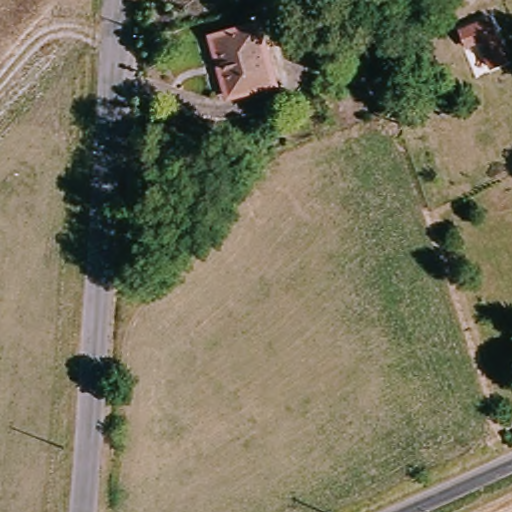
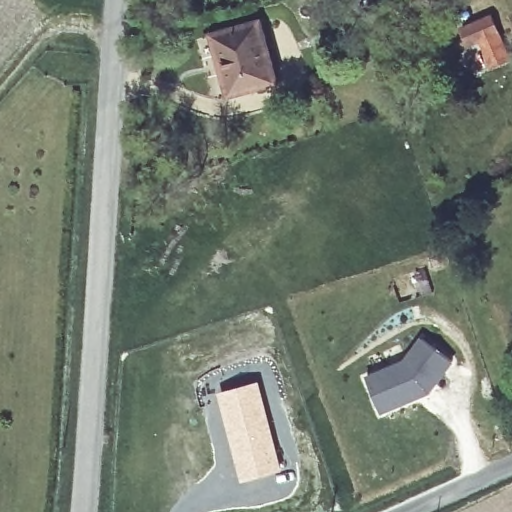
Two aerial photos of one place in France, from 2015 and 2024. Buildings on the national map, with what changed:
unchanged [(482,41),(470,46),(461,27),(490,14),(507,51),(491,58),(482,41)]
unchanged [(280,85),(235,100),(216,40),(261,26),(280,85)]
unchanged [(381,50),(392,46),(399,63),(388,68),(381,50)]
new [(365,377),(402,361),(421,338),(452,363),(429,394),(380,414),(365,377)]
new [(259,380),(284,470),(241,482),(216,391),(259,380)]

